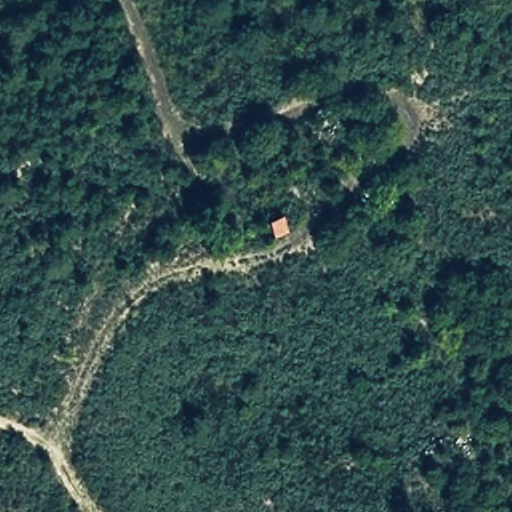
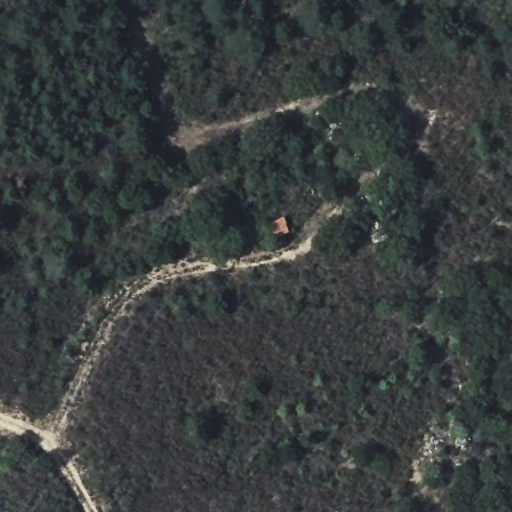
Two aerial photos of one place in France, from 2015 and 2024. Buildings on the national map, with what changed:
unchanged [(285,215),(289,233),(275,238),(269,222),(285,215)]

